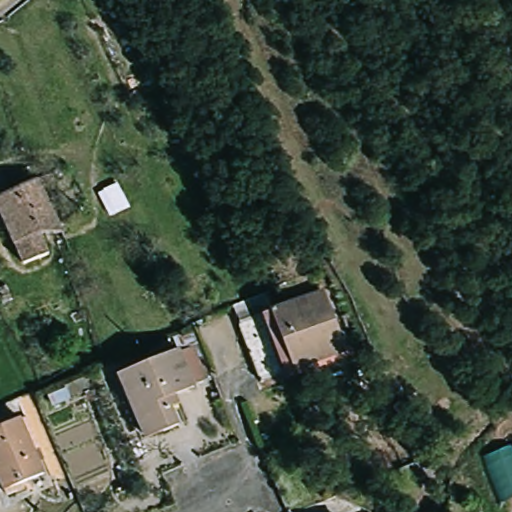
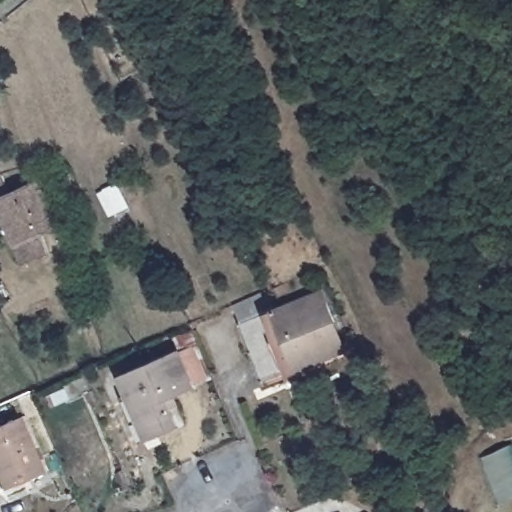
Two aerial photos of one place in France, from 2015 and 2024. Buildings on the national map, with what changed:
unchanged [(44,198),(59,230),(42,240),(49,253),(26,264),(0,216),(0,187),(4,194),(47,174),(56,191),(44,198)]
unchanged [(304,366),(306,374),(279,384),(254,321),(335,287),(358,342),(304,366)]
unchanged [(214,377),(165,399),(173,424),(143,435),(122,379),(200,345),(214,377)]
unchanged [(0,474),(0,437),(28,426),(47,475),(7,490),(0,474)]
unchanged [(512,451),(512,501),(502,505),(485,456),(510,447),(512,451)]

